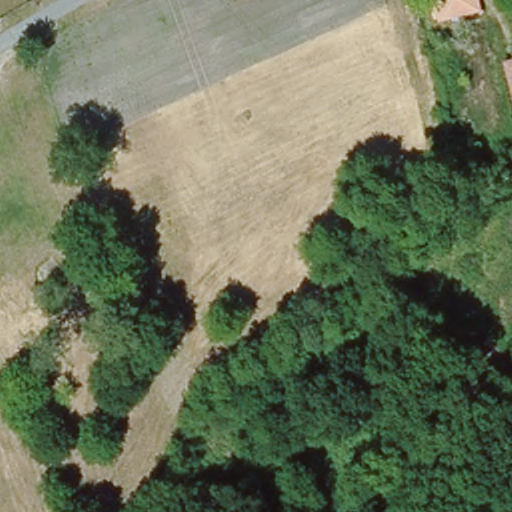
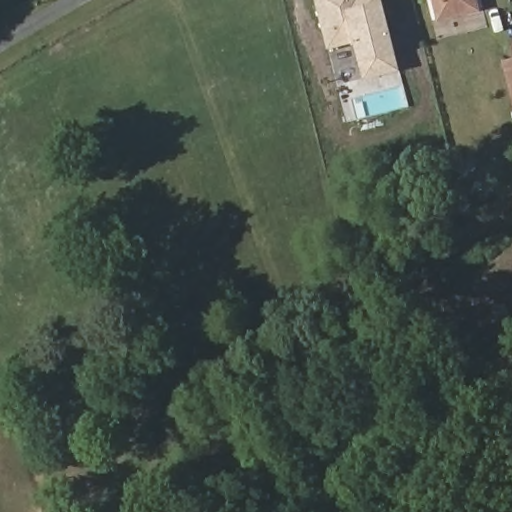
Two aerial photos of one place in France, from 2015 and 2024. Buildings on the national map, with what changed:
new [(394,53),(399,71),(362,80),(357,62),(352,43),(327,50),(314,0),(381,0),(382,1),(394,53)]
unchanged [(479,0),(480,4),(442,13),(438,0),(479,0)]
unchanged [(512,59),(512,89),(506,61),(512,59)]

